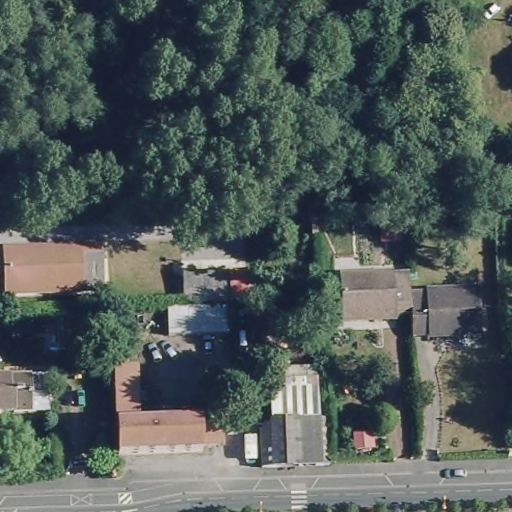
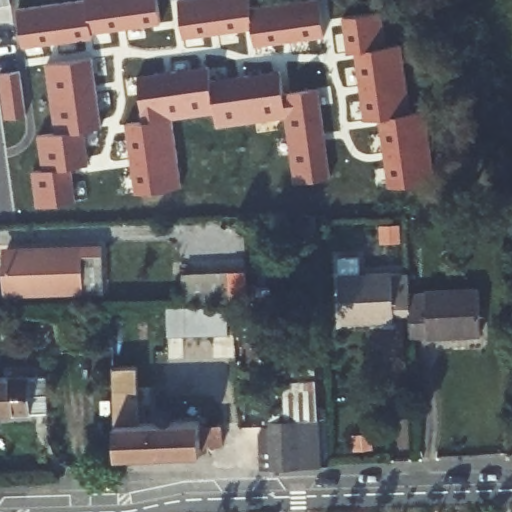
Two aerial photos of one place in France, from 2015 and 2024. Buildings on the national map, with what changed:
new [(160,22),(92,32),(92,38),(25,46),(19,8),(80,0),(157,0),(160,22)]
new [(252,6),(317,0),(324,36),(257,46),(253,28),(185,37),(180,0),(251,0),(252,6)]
new [(387,43),(403,41),(414,110),(428,109),(437,181),(390,188),(380,118),(363,118),(356,53),(347,53),(342,17),(386,13),(387,43)]
new [(103,128),(85,130),(90,164),(72,167),(77,202),(37,206),(33,170),(43,169),(38,133),(57,132),(45,63),(95,56),(103,128)]
new [(330,177),(295,181),(287,117),(216,125),(215,112),(173,118),(182,187),(135,193),(127,120),(143,119),(137,75),(209,64),(212,81),(282,71),(283,92),(318,87),(330,177)]
new [(5,118),(0,83),(0,73),(22,70),(27,115),(5,118)]
unchanged [(2,249),(102,246),(102,295),(4,297),(2,249)]
unchanged [(397,311),(397,316),(342,316),(341,271),(412,270),(412,289),(412,294),(413,311),(397,311)]
unchanged [(183,274),(245,272),(247,302),(182,305),(183,274)]
unchanged [(413,311),(412,294),(412,289),(482,288),(483,331),(413,333),(413,311)]
unchanged [(225,305),(225,333),(166,335),(165,307),(225,305)]
unchanged [(82,317),(83,343),(56,344),(55,317),(82,317)]
unchanged [(112,367),(137,366),(140,424),(200,423),(201,428),(223,427),(224,447),(202,447),(201,453),(115,455),(112,367)]
unchanged [(45,408),(0,409),(0,373),(43,372),(45,408)]
unchanged [(272,428),(270,374),(318,372),(321,427),(273,428),(272,428)]
unchanged [(321,427),(324,427),(325,471),(295,472),(255,474),(255,454),(273,453),(273,428),(321,427)]

